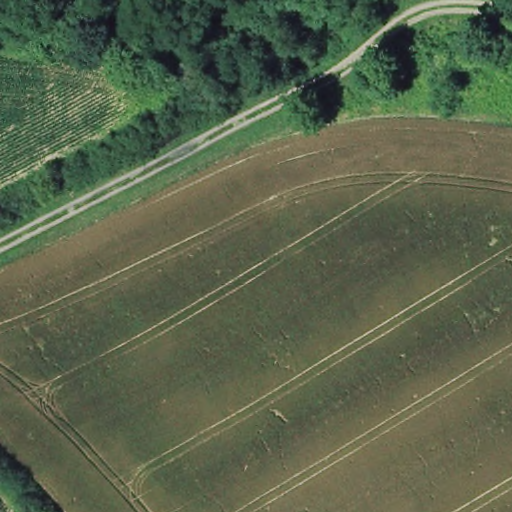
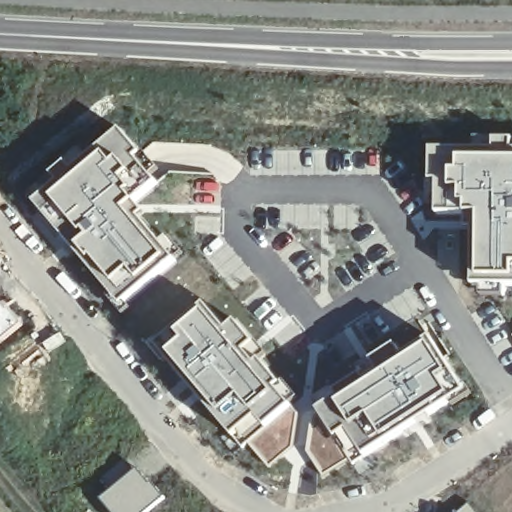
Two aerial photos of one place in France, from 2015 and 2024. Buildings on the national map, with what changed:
new [(157,184),(143,197),(304,380),(286,398),(296,413),(249,448),(28,199),(68,163),(74,172),(120,132),(157,184)]
new [(428,147),(473,146),(473,138),(512,139),(512,288),(471,288),(470,261),(473,261),(475,218),(434,217),(434,184),(427,183),(428,147)]
new [(308,451),(319,392),(418,322),(461,388),(325,480),(308,451)]
new [(140,512),(103,512),(91,498),(107,487),(100,478),(125,460),(157,497),(140,512)]

